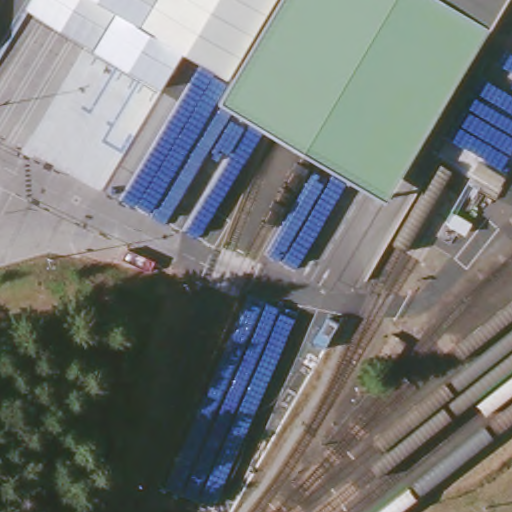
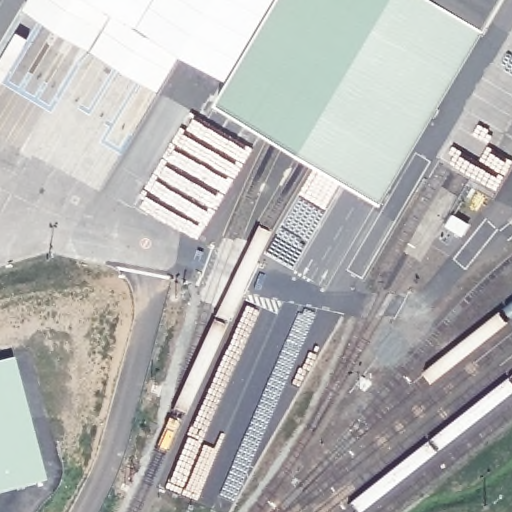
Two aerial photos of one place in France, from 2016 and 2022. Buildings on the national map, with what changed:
unchanged [(44,0),(80,0),(110,18),(100,34),(44,0)]
unchanged [(114,70),(136,34),(110,18),(80,0),(275,0),(202,122),(114,70)]
unchanged [(430,0),(504,0),(485,33),(430,0)]
unchanged [(508,0),(487,35),(485,33),(504,0),(508,0)]
unchanged [(405,345),(387,368),(377,361),(394,337),(405,345)]
new [(49,480),(0,492),(0,360),(16,356),(49,480)]

